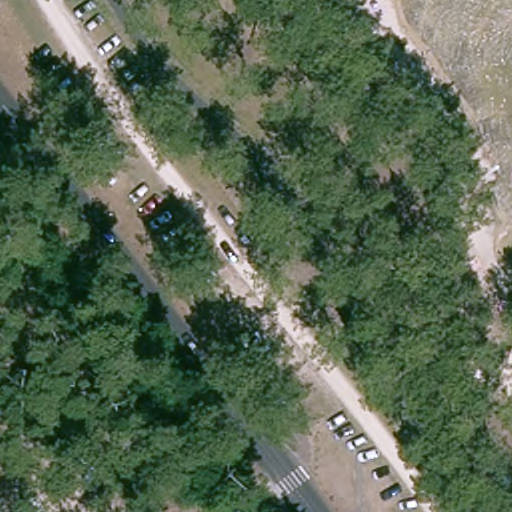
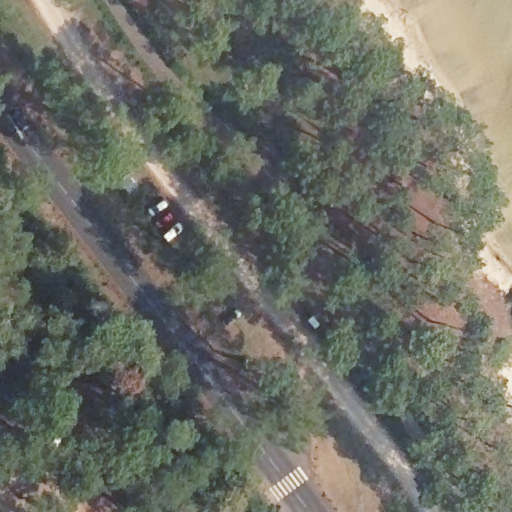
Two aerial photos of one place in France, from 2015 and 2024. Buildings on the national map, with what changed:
unchanged [(0,485),(0,461),(10,480),(0,485)]

